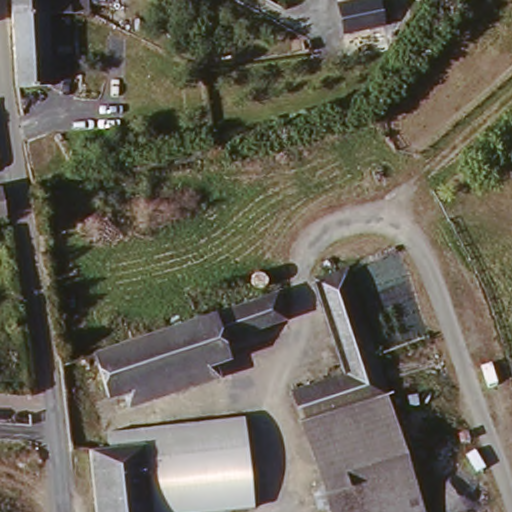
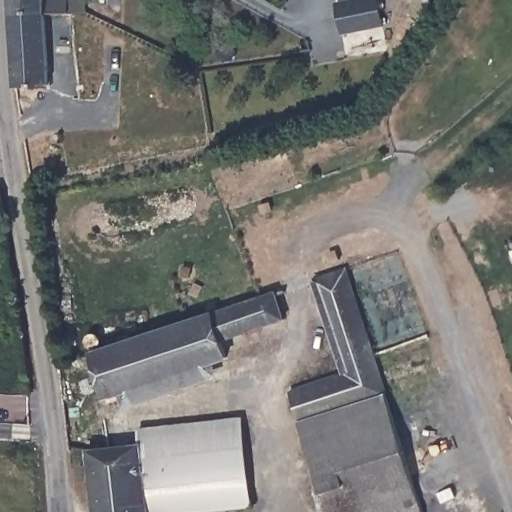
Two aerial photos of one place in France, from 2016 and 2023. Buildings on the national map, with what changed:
unchanged [(46,0),(46,4),(46,20),(9,21),(8,0),(46,0)]
unchanged [(344,39),(336,4),(354,0),(384,0),(391,30),(344,39)]
unchanged [(9,21),(43,20),(44,56),(10,61),(9,21)]
unchanged [(12,91),(10,61),(44,56),(47,91),(12,91)]
unchanged [(339,377),(312,283),(344,273),(372,358),(384,397),(300,424),(290,394),(339,377)]
unchanged [(213,316),(276,295),(283,320),(221,340),(213,316)]
unchanged [(213,316),(221,340),(228,360),(106,399),(90,358),(213,316)]
unchanged [(421,512),(328,512),(320,488),(300,424),(384,397),(421,512)]
unchanged [(112,431),(247,415),(258,512),(156,512),(151,446),(112,448),(112,431)]
unchanged [(88,450),(112,448),(151,446),(156,512),(90,512),(88,450)]

